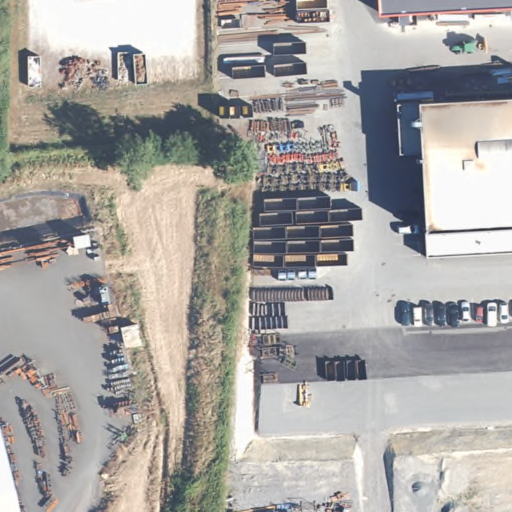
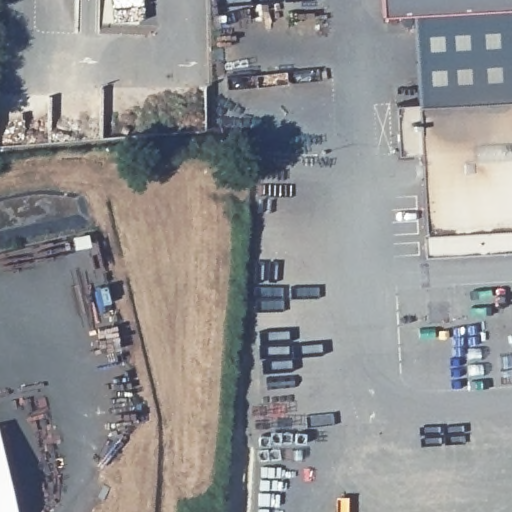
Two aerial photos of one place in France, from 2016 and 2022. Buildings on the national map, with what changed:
new [(383,14),(382,0),(512,0),(512,99),(418,103),(414,13),(383,14)]
unchanged [(512,99),(512,252),(426,257),(419,152),(397,155),(393,104),(418,103),(512,99)]
unchanged [(17,512),(0,512),(0,433),(17,512)]

